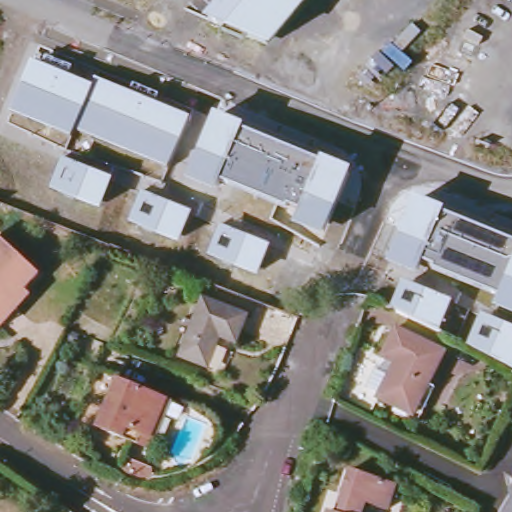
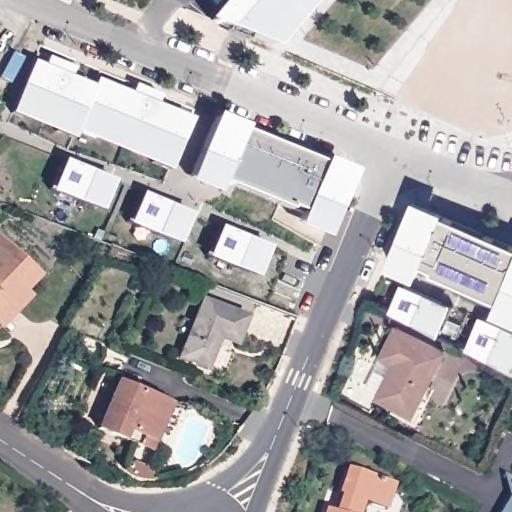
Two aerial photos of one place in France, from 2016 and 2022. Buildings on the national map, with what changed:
unchanged [(312,0),(270,50),(205,19),(221,0),(312,0)]
unchanged [(167,170),(74,131),(70,138),(10,113),(31,61),(93,87),(95,79),(190,119),(167,170)]
unchanged [(321,238),(295,227),(302,212),(288,207),(287,210),(219,182),(215,193),(187,182),(215,113),(245,126),(242,132),(320,164),(322,159),(352,171),(321,238)]
unchanged [(50,191),(63,159),(113,179),(100,211),(50,191)]
unchanged [(128,223),(142,192),(192,213),(178,246),(128,223)]
unchanged [(416,198),(447,211),(445,215),(512,242),(512,318),(495,311),(500,297),(434,270),(435,267),(423,262),(417,277),(387,265),(416,198)]
unchanged [(207,257),(220,226),(270,245),(257,277),(207,257)]
unchanged [(22,302),(15,297),(0,312),(0,241),(42,281),(22,302)]
unchanged [(392,310),(403,282),(453,302),(441,330),(392,310)]
unchanged [(237,341),(218,336),(209,362),(180,353),(202,296),(246,313),(237,341)]
unchanged [(467,347),(481,315),(512,327),(512,369),(467,347)]
unchanged [(448,354),(415,417),(380,399),(397,366),(385,358),(400,330),(448,354)]
unchanged [(150,435),(127,426),(122,435),(97,425),(118,376),(167,397),(150,435)]
unchanged [(393,485),(385,511),(362,503),(360,512),(337,512),(343,497),(339,496),(348,470),(393,485)]
unchanged [(511,485),(512,483),(512,488),(511,485)]
unchanged [(512,505),(512,512),(508,512),(512,505)]

